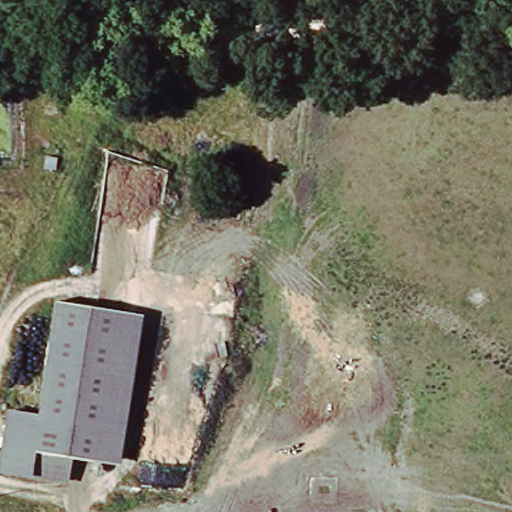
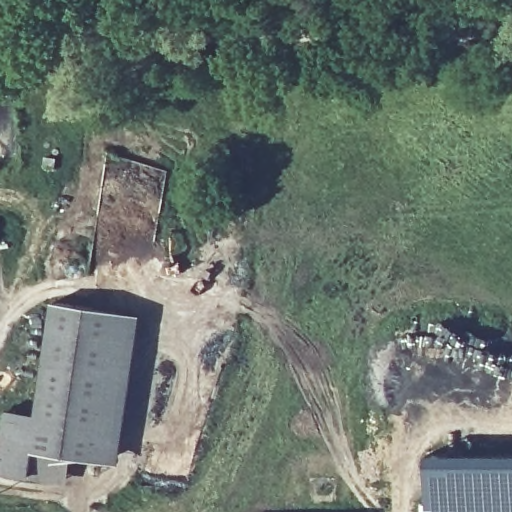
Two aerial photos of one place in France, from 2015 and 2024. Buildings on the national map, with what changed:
unchanged [(37,452),(30,481),(0,477),(0,455),(7,412),(38,416),(56,301),(144,316),(121,466),(37,452)]
new [(512,453),(512,512),(430,512),(430,452),(512,453)]

